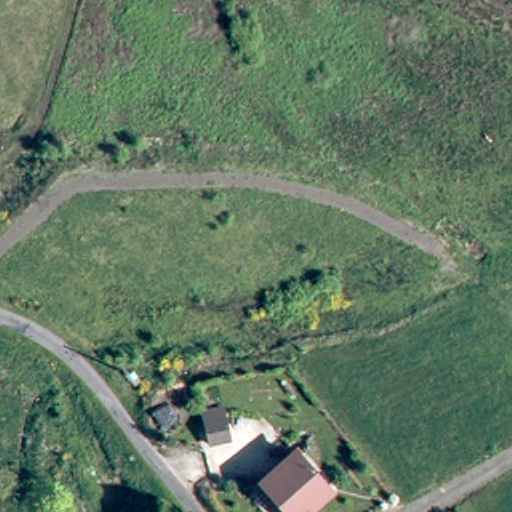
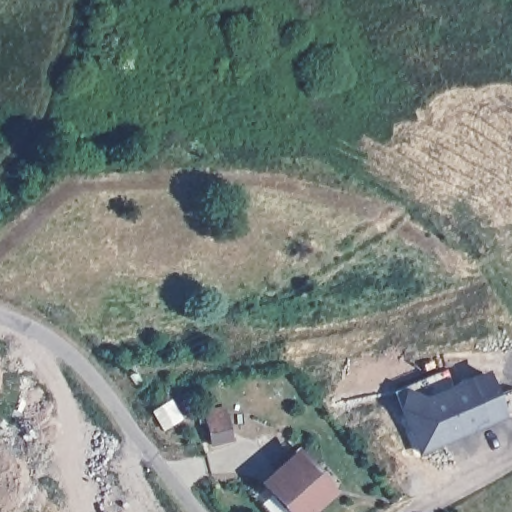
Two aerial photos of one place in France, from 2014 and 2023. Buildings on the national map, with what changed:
new [(392,392),(450,368),(455,387),(486,377),(504,418),(417,453),(392,392)]
new [(152,413),(169,402),(179,417),(162,430),(152,413)]
new [(203,414),(227,411),(230,441),(209,446),(203,414)]
unchanged [(327,496),(308,512),(285,512),(262,487),(294,458),(327,496)]

